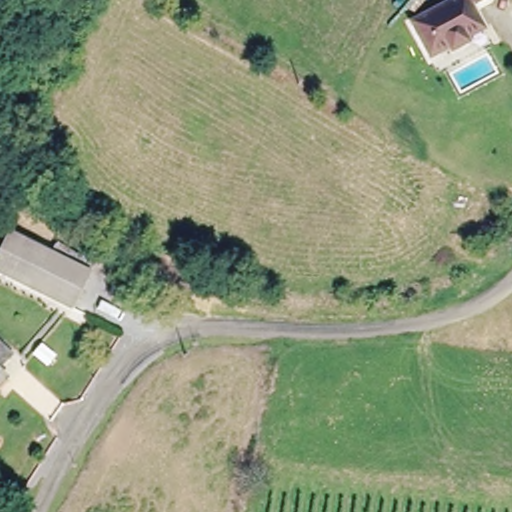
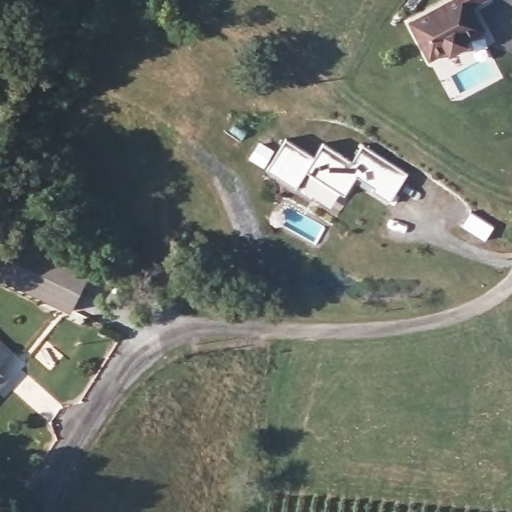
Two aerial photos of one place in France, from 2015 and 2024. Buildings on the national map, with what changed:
unchanged [(454,0),(484,0),(473,6),(484,28),(468,34),(472,42),(455,50),(453,46),(432,57),(414,20),(454,0)]
new [(283,140),(312,157),(320,144),(350,161),(360,144),(405,172),(388,200),(370,189),(372,186),(355,176),(343,195),(305,172),(295,189),(265,171),(283,140)]
unchanged [(0,274),(0,260),(1,257),(11,233),(74,260),(91,267),(77,299),(75,305),(56,297),(0,274)]
unchanged [(11,359),(0,372),(0,348),(11,359)]
unchanged [(0,388),(0,376),(6,381),(0,388)]

